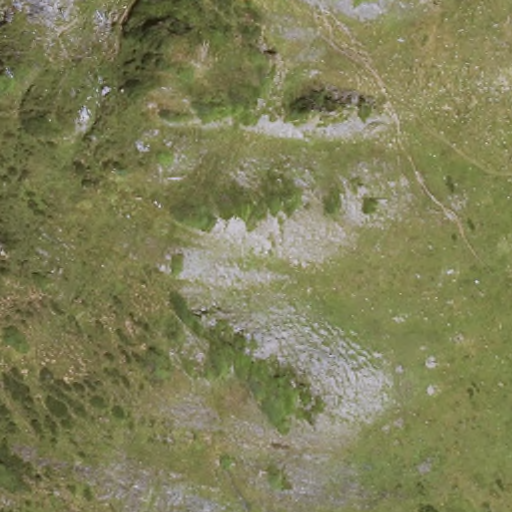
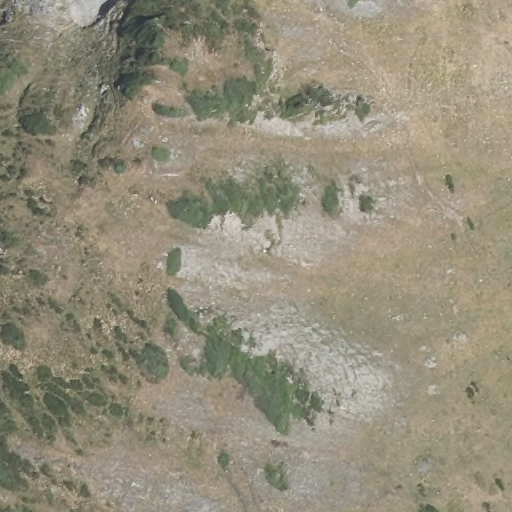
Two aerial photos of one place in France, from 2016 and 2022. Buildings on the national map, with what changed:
[]

